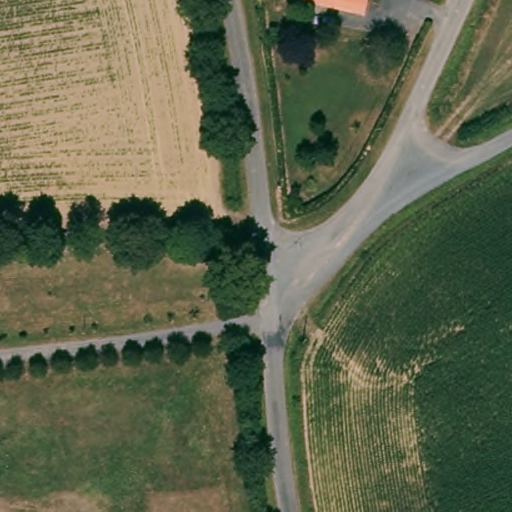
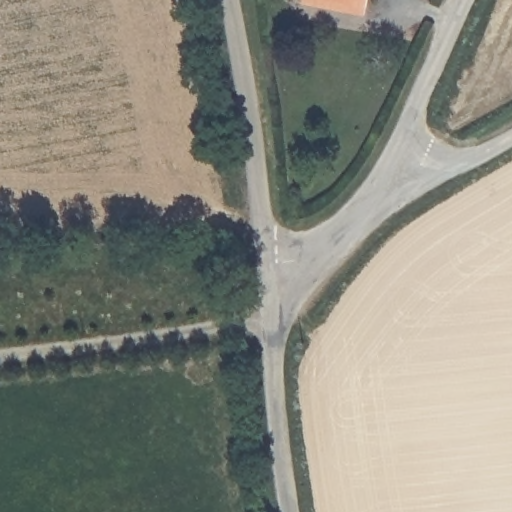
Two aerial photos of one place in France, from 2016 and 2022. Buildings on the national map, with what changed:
unchanged [(338,0),(369,0),(367,6),(338,0)]

